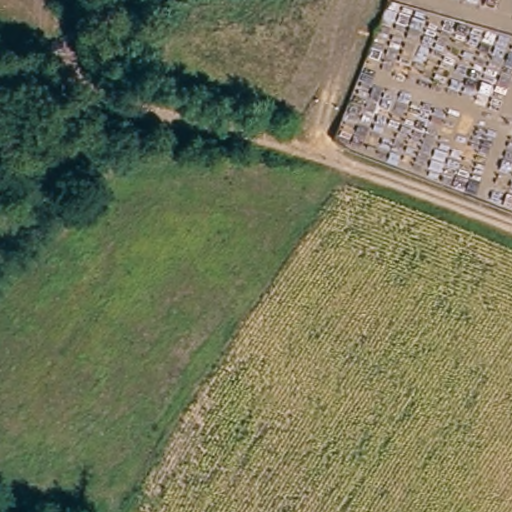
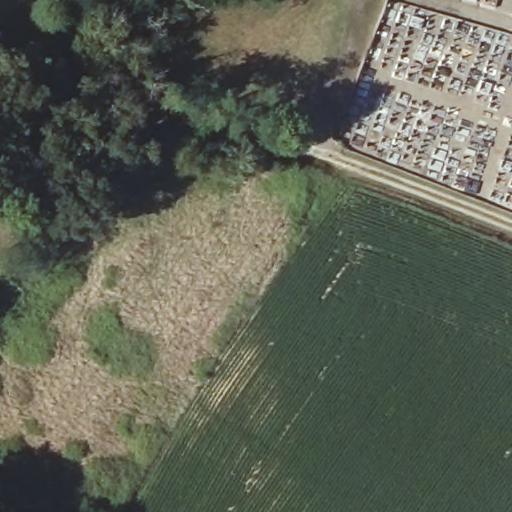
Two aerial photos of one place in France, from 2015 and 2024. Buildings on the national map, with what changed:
[]

